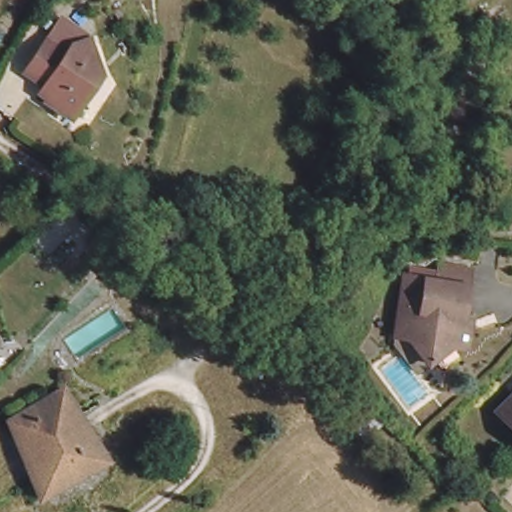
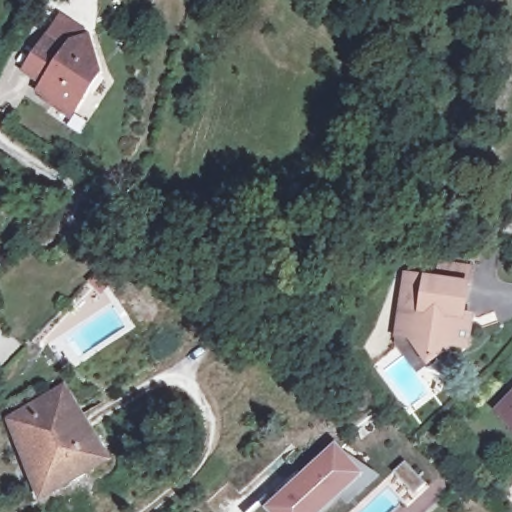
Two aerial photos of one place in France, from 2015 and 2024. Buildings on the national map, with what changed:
unchanged [(40,74),(19,60),(40,29),(60,42),(65,34),(86,28),(98,62),(85,82),(68,108),(41,89),(41,88),(34,83),(40,74)]
unchanged [(466,325),(462,347),(447,345),(426,362),(406,337),(394,336),(402,275),(434,280),(437,266),(466,271),(464,285),(459,316),(468,317),(466,325)]
unchanged [(483,411),(512,383),(512,442),(483,411)]
unchanged [(41,496),(10,420),(63,388),(108,459),(41,496)]
new [(273,499),(336,441),(351,457),(381,475),(349,505),(341,496),(325,512),(249,512),(268,494),(273,499)]

